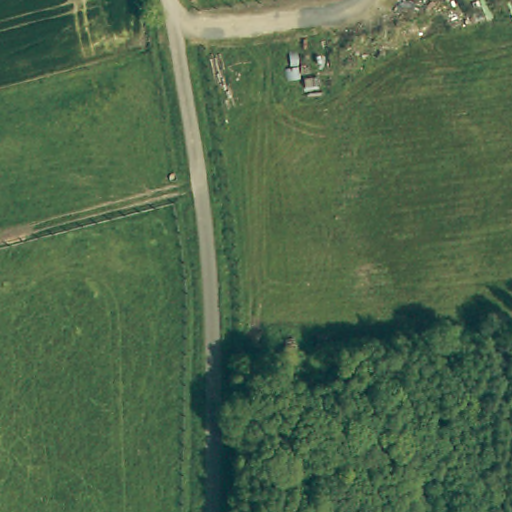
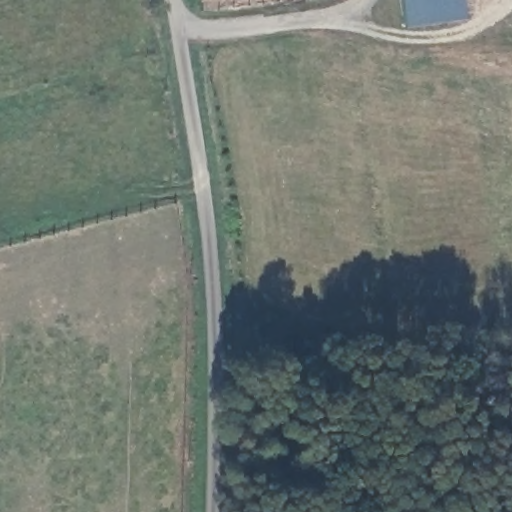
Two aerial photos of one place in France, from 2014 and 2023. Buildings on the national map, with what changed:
new [(403,25),(400,0),(462,0),(465,17),(403,25)]

